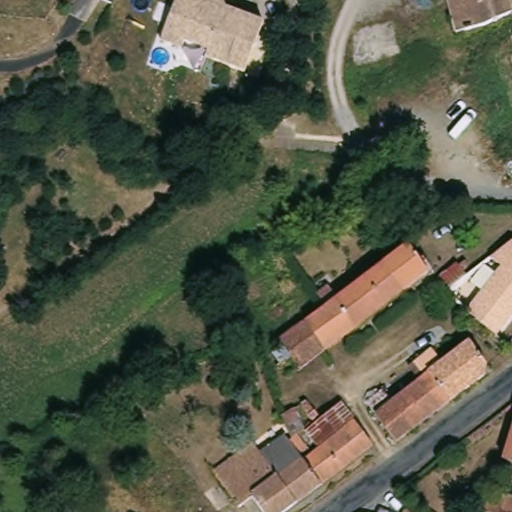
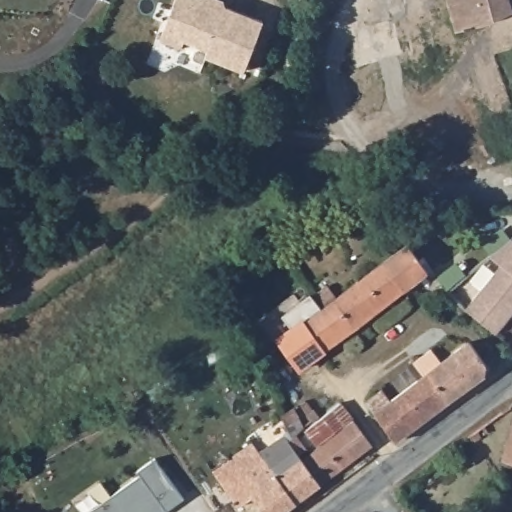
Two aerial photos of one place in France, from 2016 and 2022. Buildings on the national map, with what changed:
unchanged [(203,0),(222,7),(222,13),(261,27),(243,78),(205,63),(204,63),(206,56),(183,47),(180,54),(159,46),(176,0),(189,0),(199,4),(203,0)]
unchanged [(509,0),(512,13),(512,16),(487,27),(474,30),(461,33),(458,34),(449,0),(509,0)]
unchanged [(506,197),(506,195),(503,186),(512,184),(512,195),(509,196),(506,197)]
unchanged [(423,272),(407,284),(398,291),(394,285),(377,264),(402,245),(423,272)]
unchanged [(512,246),(512,321),(497,340),(466,316),(501,271),(490,262),(512,246)]
unchanged [(316,310),(377,264),(394,285),(398,291),(395,294),(320,352),(299,324),(316,310)]
unchanged [(320,352),(296,370),(275,342),(299,324),(320,352)]
unchanged [(424,371),(463,342),(480,366),(480,375),(446,401),(424,371)]
unchanged [(386,401),(424,371),(446,401),(433,410),(406,430),(390,442),(369,414),(386,401)]
unchanged [(308,421),(295,405),(299,402),(307,411),(309,410),(314,416),(308,421)]
unchanged [(311,445),(300,430),(329,409),(336,404),(346,419),(311,445)]
unchanged [(248,498),(234,507),(209,473),(249,444),(257,455),(280,438),(282,441),(286,438),(276,416),(288,409),(299,428),(289,435),(299,448),(292,454),(294,457),(296,459),(314,486),(279,512),(258,512),(248,498)]
unchanged [(499,459),(512,419),(512,464),(499,459)]
unchanged [(296,459),(317,442),(318,443),(348,421),(367,446),(314,486),(296,459)]
new [(183,498),(165,512),(89,512),(140,474),(138,472),(155,459),(183,498)]
unchanged [(502,492),(512,498),(512,512),(488,512),(502,492)]

